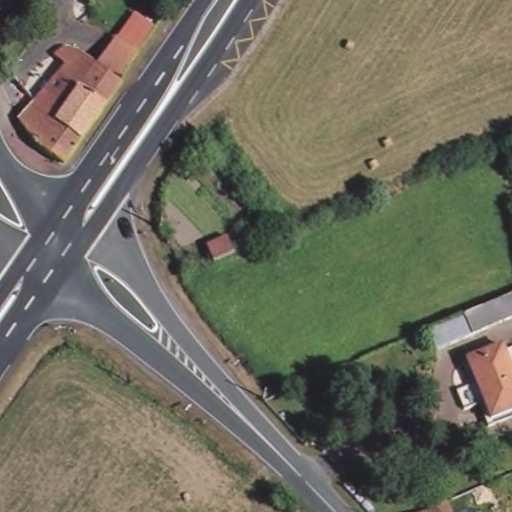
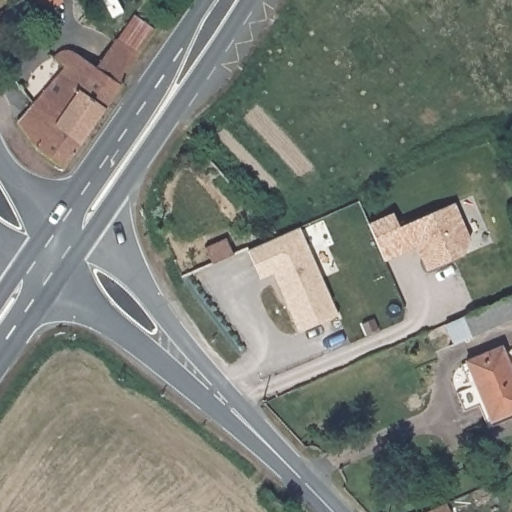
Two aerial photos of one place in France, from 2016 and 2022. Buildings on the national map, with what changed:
unchanged [(37,154),(21,126),(76,57),(96,71),(108,56),(128,70),(117,86),(120,88),(81,145),(62,171),(37,154)]
new [(469,241),(461,246),(463,254),(426,271),(416,247),(384,261),(368,222),(393,212),(399,227),(454,204),(469,241)]
new [(299,332),(274,273),(260,277),(248,250),(300,227),(337,315),(299,332)]
unchanged [(512,322),(434,354),(425,335),(512,297),(512,322)]
unchanged [(512,387),(512,415),(490,427),(462,369),(496,352),(512,387)]
unchanged [(436,509),(438,512),(429,512),(436,509)]

